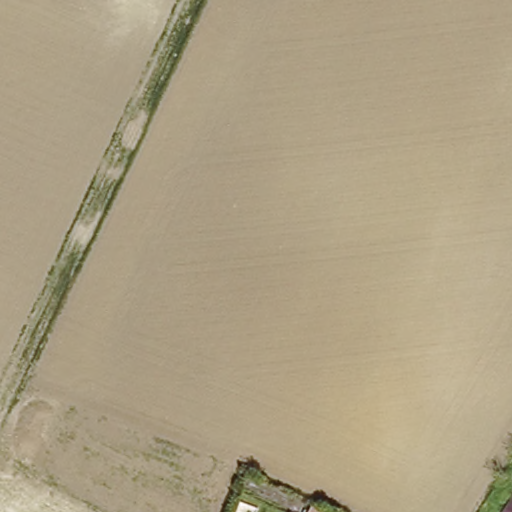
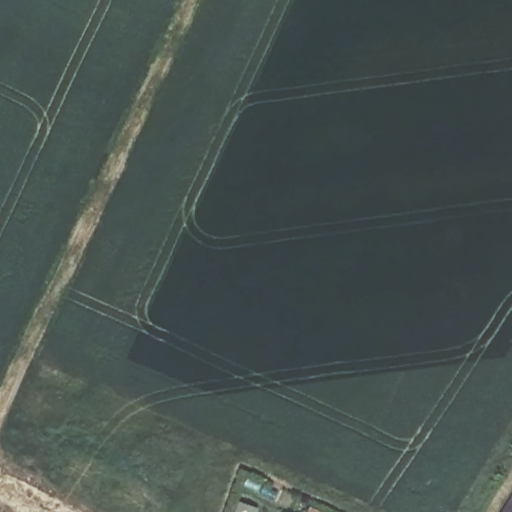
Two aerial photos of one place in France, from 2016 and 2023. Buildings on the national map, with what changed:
unchanged [(512,501),(512,512),(505,512),(512,501)]

